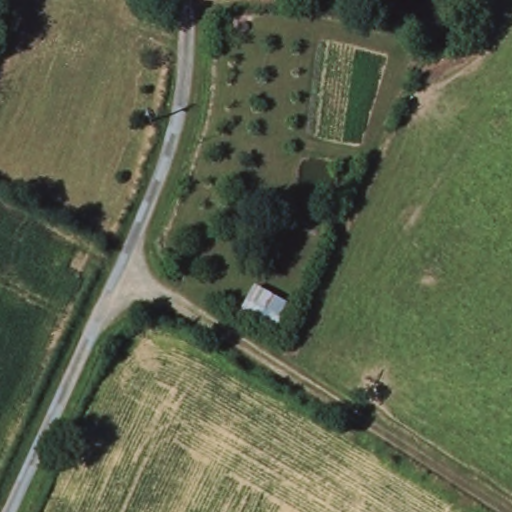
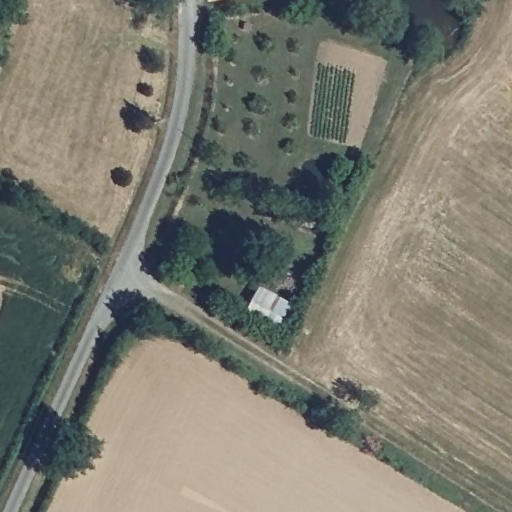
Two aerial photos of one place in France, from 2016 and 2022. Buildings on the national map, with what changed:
unchanged [(204,2),(203,0),(221,0),(204,2)]

